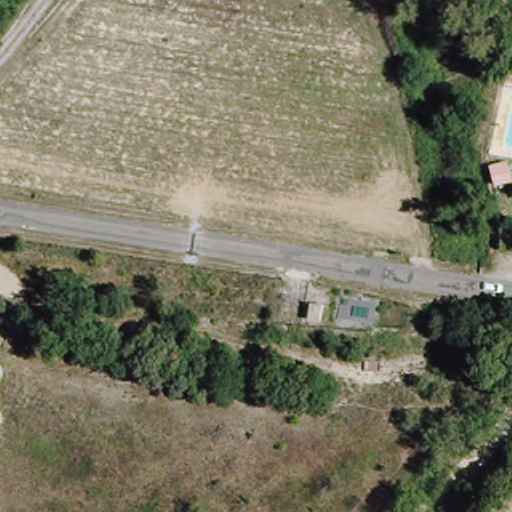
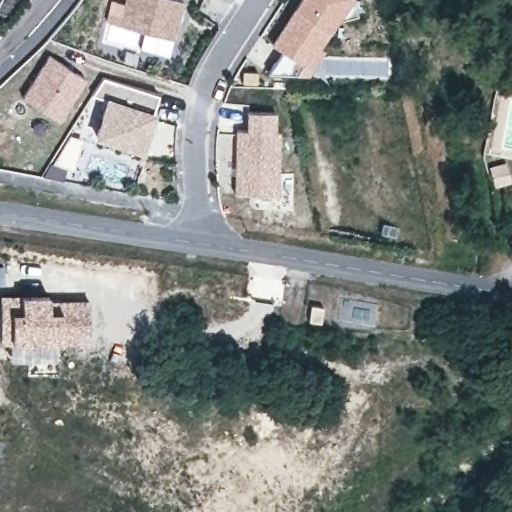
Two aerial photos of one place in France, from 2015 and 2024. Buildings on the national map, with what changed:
new [(109,23),(112,12),(123,15),(126,0),(183,0),(173,37),(109,23)]
new [(336,20),(321,46),(326,50),(309,75),(269,72),(281,52),(272,45),(300,0),(355,0),(359,15),(336,20)]
new [(23,96),(50,57),(85,79),(59,120),(23,96)]
new [(97,136),(107,101),(94,95),(103,79),(160,95),(156,112),(142,151),(97,136)]
new [(234,194),(236,130),(246,130),(247,111),(275,112),(274,131),(279,131),(278,195),(234,194)]
new [(490,165),(507,161),(512,184),(495,188),(490,165)]
new [(62,340),(20,342),(1,340),(2,300),(23,300),(23,295),(49,295),(49,300),(88,300),(90,342),(62,340)]
unchanged [(329,325),(316,323),(319,307),(331,309),(329,325)]

